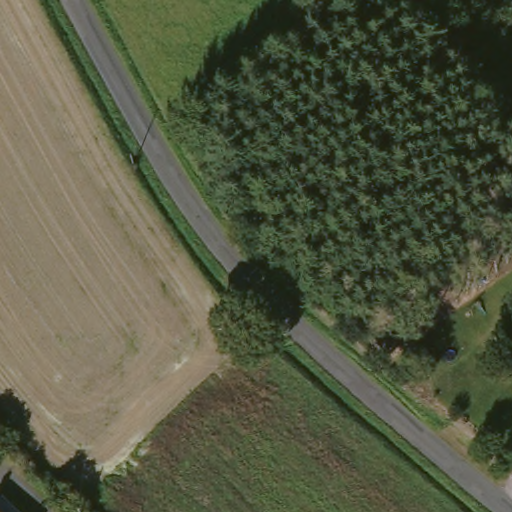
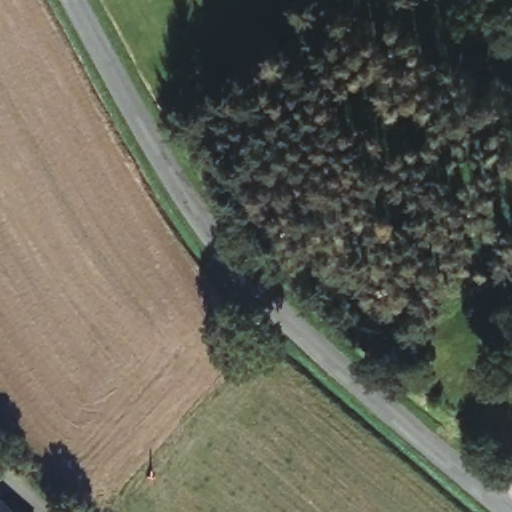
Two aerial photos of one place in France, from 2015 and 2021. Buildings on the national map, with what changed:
unchanged [(0,512),(0,501),(3,498),(18,512),(0,512)]

